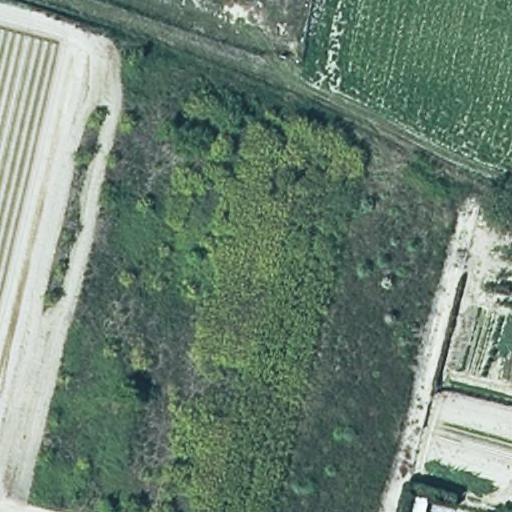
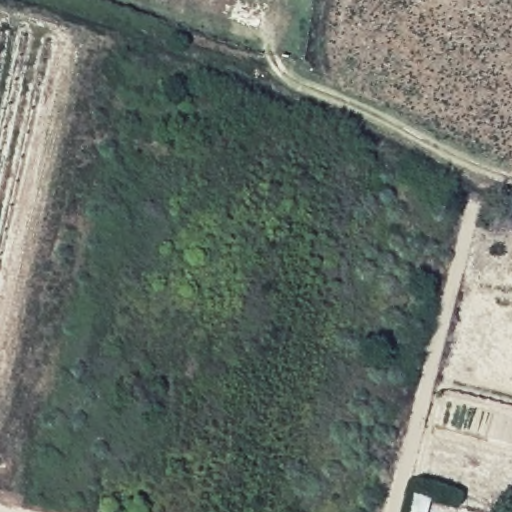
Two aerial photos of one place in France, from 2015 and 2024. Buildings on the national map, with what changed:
unchanged [(428,512),(406,512),(411,495),(431,500),(428,512)]

